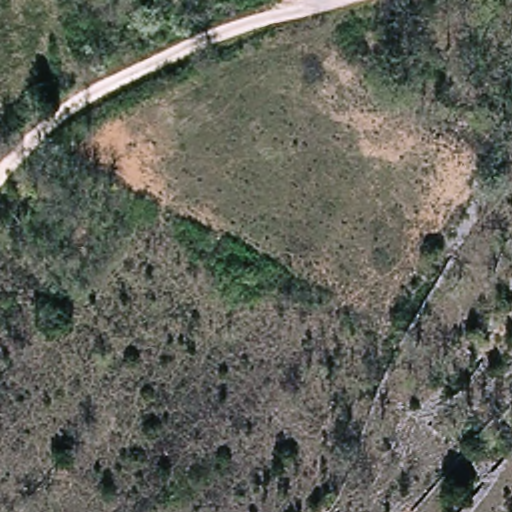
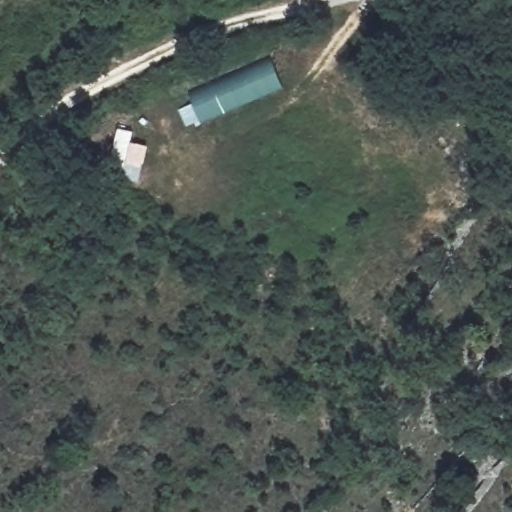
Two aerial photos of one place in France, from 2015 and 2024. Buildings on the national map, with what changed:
new [(269,58),(283,90),(201,125),(188,92),(269,58)]

